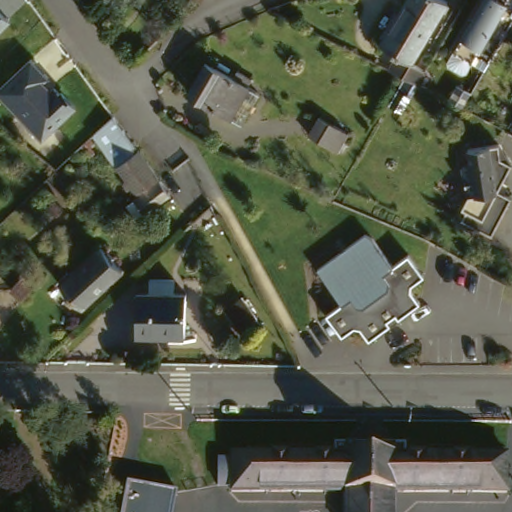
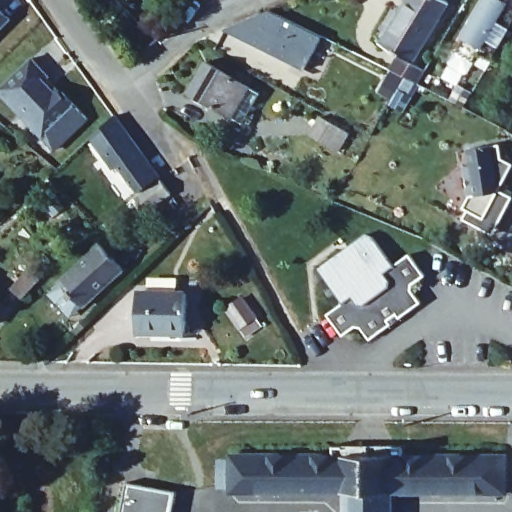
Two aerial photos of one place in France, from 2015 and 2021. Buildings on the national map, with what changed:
unchanged [(434,76),(428,72),(417,67),(401,60),(411,44),(392,34),(412,0),(455,0),(423,51),(437,58),(442,61),(434,76)]
unchanged [(478,0),(502,0),(499,5),(512,12),(512,15),(483,64),(451,46),(478,0)]
new [(322,37),(304,70),(224,30),(267,10),(322,37)]
unchanged [(0,26),(0,21),(3,24),(0,26)]
unchanged [(0,89),(33,60),(73,104),(39,134),(0,93),(0,89)]
unchanged [(233,117),(206,101),(189,91),(207,60),(233,75),(236,77),(239,71),(252,78),(248,85),(250,87),(261,92),(244,122),(233,117)]
unchanged [(119,154),(100,127),(118,108),(140,139),(119,154)]
unchanged [(354,131),(344,150),(316,136),(326,116),(354,131)]
unchanged [(101,137),(97,141),(101,146),(96,150),(87,139),(95,130),(101,137)]
unchanged [(453,217),(466,191),(458,150),(496,139),(508,167),(497,187),(511,195),(490,233),(453,217)]
unchanged [(164,171),(142,187),(122,159),(144,143),(164,171)]
unchanged [(176,188),(151,207),(141,194),(140,192),(166,174),(176,188)]
unchanged [(401,311),(393,317),(397,322),(375,337),(366,324),(360,323),(347,332),(332,311),(348,300),(324,265),(373,230),(380,234),(400,262),(416,252),(431,273),(419,282),(418,287),(427,300),(405,316),(401,311)]
unchanged [(196,237),(205,247),(191,261),(181,251),(196,237)]
unchanged [(128,267),(85,306),(63,280),(104,242),(128,267)]
unchanged [(14,285),(31,266),(42,276),(26,295),(14,285)]
unchanged [(160,289),(161,276),(186,277),(185,290),(199,290),(198,331),(182,331),(146,331),(149,288),(160,289)]
unchanged [(0,296),(5,299),(0,306),(0,296)]
unchanged [(230,492),(231,485),(217,485),(217,459),(231,459),(231,452),(331,454),(332,445),(406,446),(405,455),(506,456),(506,494),(392,493),(392,512),(344,512),(344,493),(230,492)]
unchanged [(177,492),(173,512),(121,512),(127,482),(177,492)]

